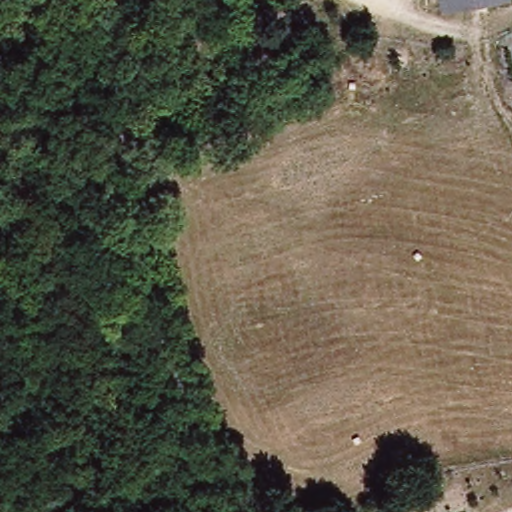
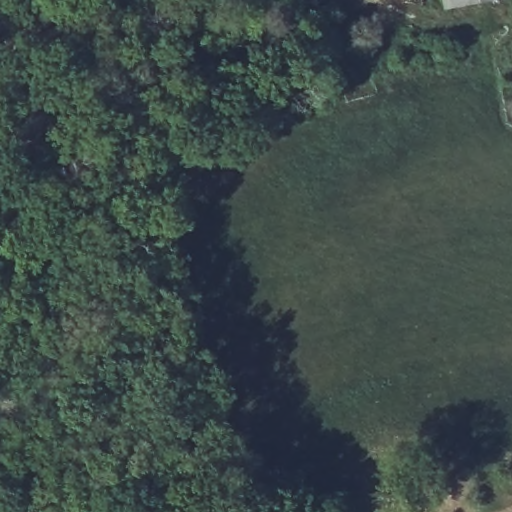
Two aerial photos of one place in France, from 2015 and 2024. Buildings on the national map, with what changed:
[]

